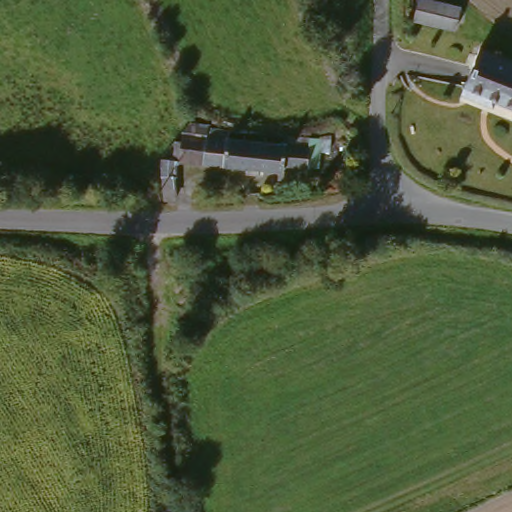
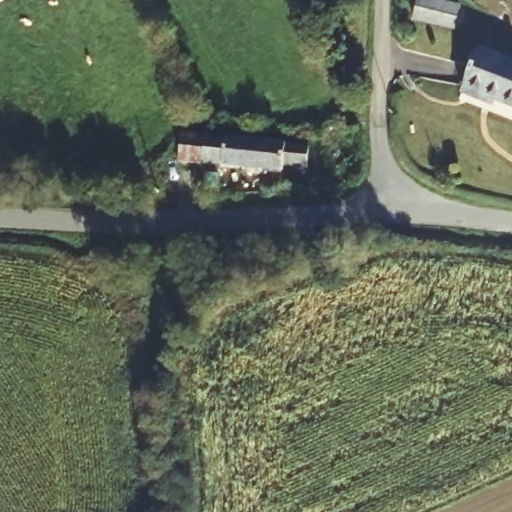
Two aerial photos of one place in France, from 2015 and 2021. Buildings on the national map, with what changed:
unchanged [(418,5),(459,15),(454,37),(413,28),(418,5)]
unchanged [(476,105),(456,97),(474,46),(512,61),(512,110),(479,99),(476,105)]
unchanged [(278,171),(276,180),(178,164),(181,135),(306,156),(303,175),(278,171)]

